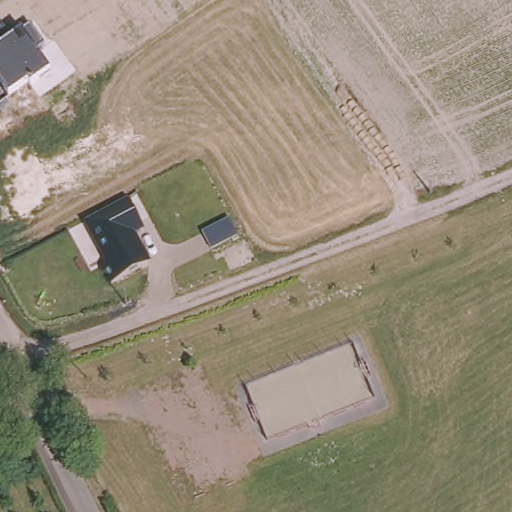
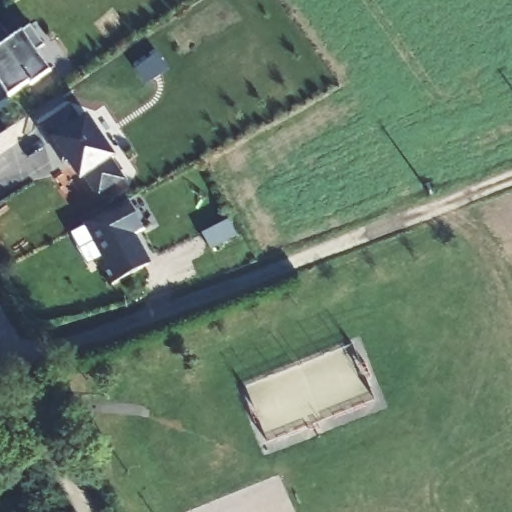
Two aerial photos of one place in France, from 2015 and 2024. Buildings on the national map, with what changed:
unchanged [(30,26),(43,45),(36,50),(51,71),(31,85),(29,82),(10,96),(0,82),(0,23),(13,38),(30,26)]
new [(83,177),(80,180),(66,161),(62,164),(37,126),(69,105),(80,119),(87,114),(116,157),(111,160),(126,180),(97,199),(83,177)]
unchanged [(145,230),(136,235),(151,263),(110,285),(98,263),(103,260),(82,225),(128,199),(145,230)]

